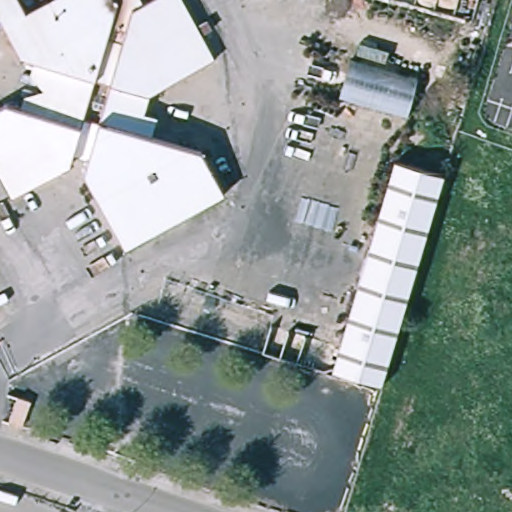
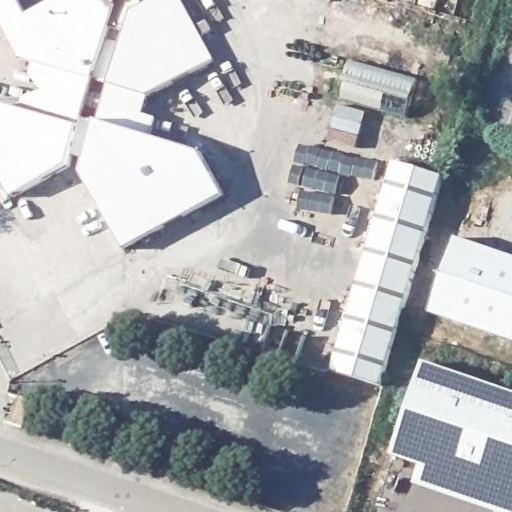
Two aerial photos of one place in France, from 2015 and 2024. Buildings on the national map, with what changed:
unchanged [(18,200),(0,164),(0,112),(11,106),(29,112),(32,98),(52,95),(38,79),(42,68),(29,64),(0,8),(0,0),(26,0),(35,18),(72,0),(145,0),(149,9),(165,0),(187,0),(222,66),(157,101),(152,118),(164,122),(158,141),(208,156),(230,198),(130,251),(90,177),(95,161),(81,156),(77,168),(18,200)]
unchanged [(412,118),(337,99),(349,59),(417,78),(412,118)]
unchanged [(445,176),(442,182),(427,233),(402,318),(382,387),(330,372),(392,160),(445,176)]
new [(512,257),(512,342),(432,316),(457,239),(512,257)]
unchanged [(302,337),(293,363),(258,351),(267,325),(302,337)]
new [(512,392),(512,512),(493,512),(414,485),(421,467),(392,456),(424,363),(512,392)]

